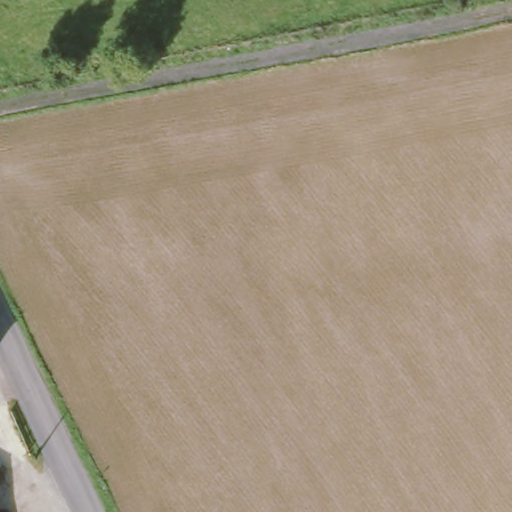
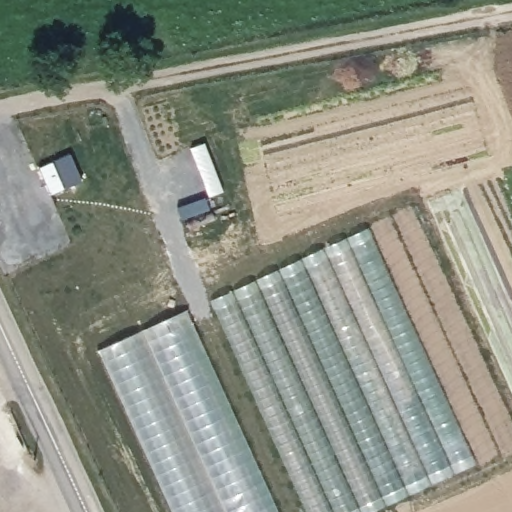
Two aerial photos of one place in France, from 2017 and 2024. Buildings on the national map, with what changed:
new [(512,449),(376,512),(308,512),(211,302),(411,204),(512,422),(512,449)]
new [(173,512),(99,351),(186,310),(279,512),(173,512)]

